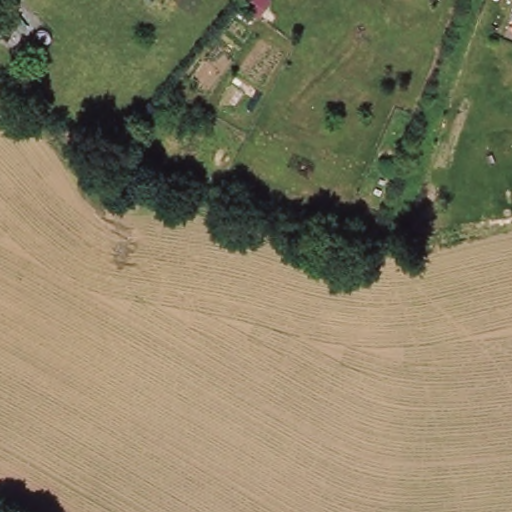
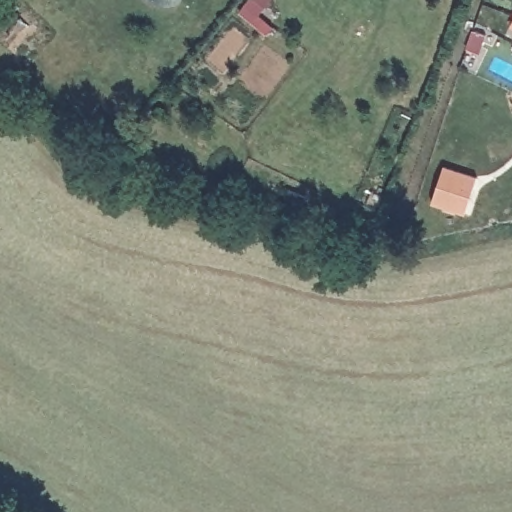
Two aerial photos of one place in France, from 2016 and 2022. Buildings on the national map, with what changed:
unchanged [(512,18),(512,31),(506,27),(512,18)]
new [(432,202),(443,166),(477,177),(465,214),(432,202)]

